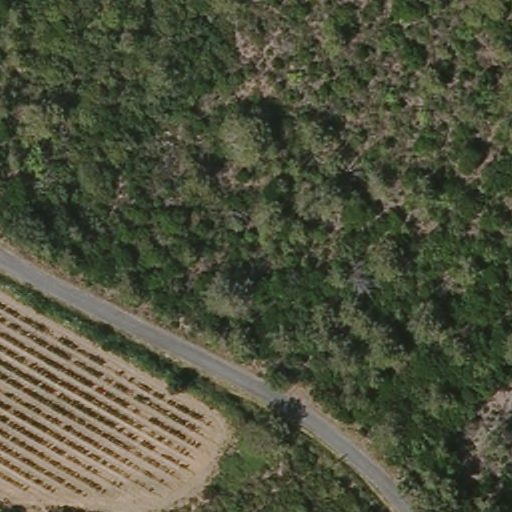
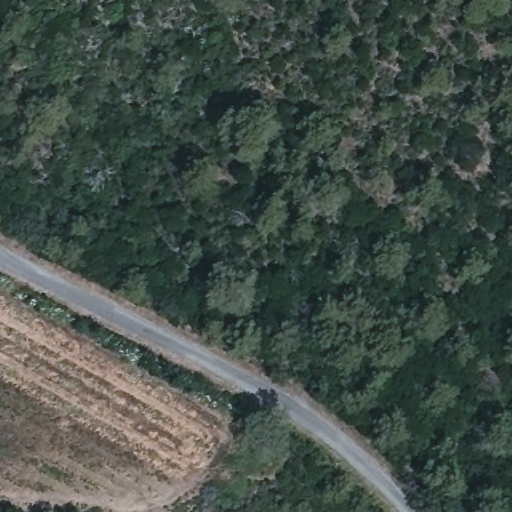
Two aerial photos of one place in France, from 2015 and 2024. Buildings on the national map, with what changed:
unchanged [(264,427),(253,437),(245,430),(255,418),(264,427)]

